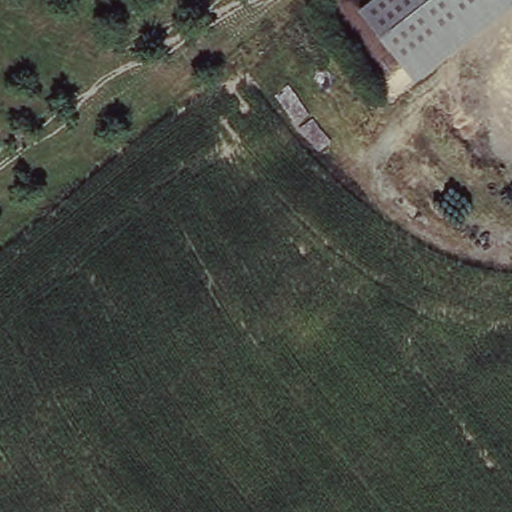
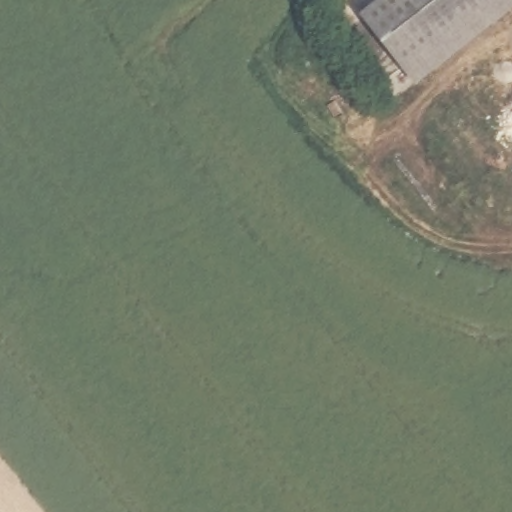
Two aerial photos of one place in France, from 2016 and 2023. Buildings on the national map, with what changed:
unchanged [(373,0),(512,0),(512,3),(409,82),(355,14),(373,0)]

